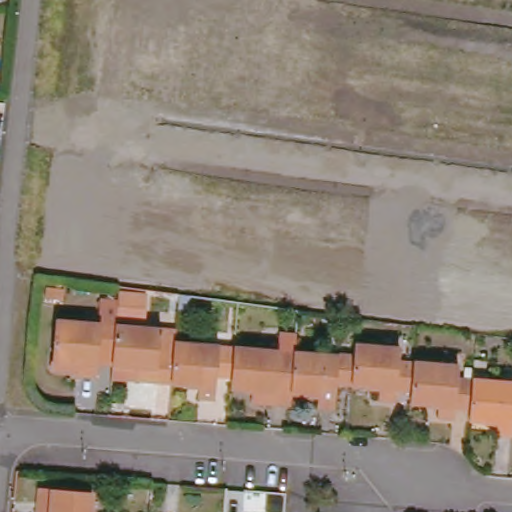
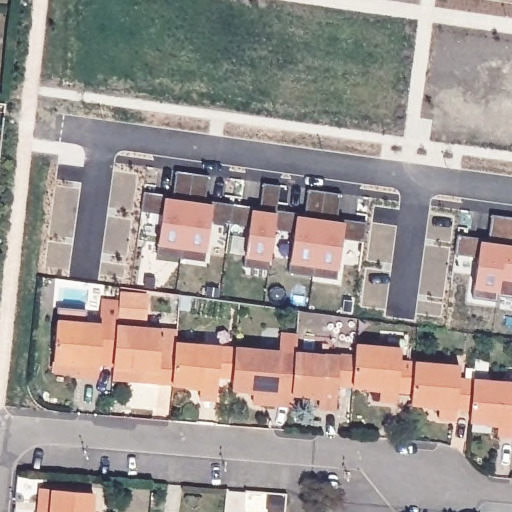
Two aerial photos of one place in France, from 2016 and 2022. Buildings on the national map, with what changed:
new [(206,250),(158,244),(163,214),(143,211),(144,191),(174,195),(176,171),(209,175),(206,200),(261,207),(264,184),(279,185),(277,210),(306,213),(309,188),(341,192),(338,219),(366,221),(364,240),(342,237),(339,269),(291,262),(295,228),(274,225),(271,260),(246,256),(250,221),(211,214),(206,250)]
new [(499,299),(475,295),(479,260),(455,257),(457,235),(491,242),(492,215),(512,218),(512,296),(499,295),(499,299)]
unchanged [(123,320),(126,293),(150,295),(147,323),(123,320)]
unchanged [(118,355),(103,355),(101,377),(85,375),(85,363),(58,360),(61,320),(121,325),(118,355)]
unchanged [(118,366),(118,355),(121,325),(183,330),(181,342),(178,383),(146,381),(116,378),(118,366)]
unchanged [(237,377),(239,347),(291,352),(293,336),(301,336),(299,352),(296,393),(295,405),(255,402),(256,390),(236,388),(237,377)]
unchanged [(181,342),(239,347),(237,377),(221,376),(218,399),(204,397),(206,386),(178,383),(181,342)]
unchanged [(359,357),(360,345),(404,349),(404,360),(419,362),(418,391),(402,390),(400,401),(384,400),(386,390),(357,386),(359,357)]
unchanged [(299,352),(359,357),(357,386),(341,385),(339,409),(323,408),(323,396),(296,393),(299,352)]
unchanged [(418,391),(419,362),(463,366),(462,378),(478,380),(476,408),(459,407),(459,418),(443,417),(444,406),(417,403),(418,391)]
unchanged [(478,380),(512,384),(512,435),(503,435),(504,423),(474,420),(476,408),(478,380)]
unchanged [(44,488),(56,490),(98,492),(96,512),(42,512),(43,508),(44,488)]

